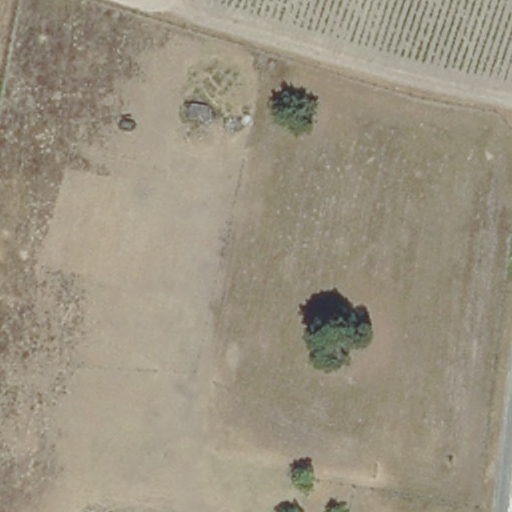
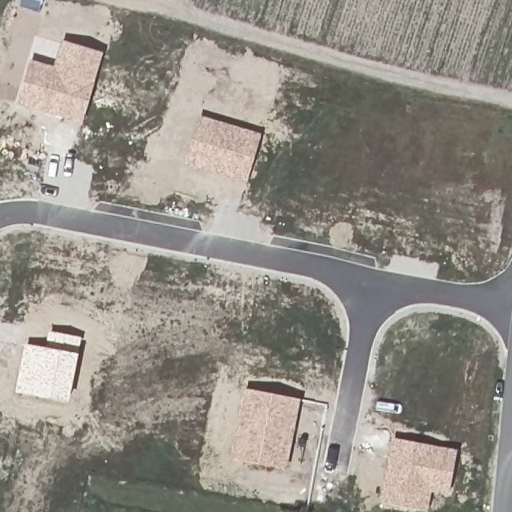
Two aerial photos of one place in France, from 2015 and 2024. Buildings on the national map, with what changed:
new [(82,124),(17,105),(30,60),(53,67),(62,41),(104,53),(82,124)]
new [(246,183),(184,165),(199,116),(261,134),(246,183)]
new [(33,395),(15,392),(24,344),(44,347),(49,332),(81,337),(78,355),(68,402),(33,395)]
new [(300,400),(286,471),(229,460),(243,389),(300,400)]
new [(431,492),(427,512),(379,503),(392,437),(451,449),(450,452),(456,453),(448,493),(431,492)]

